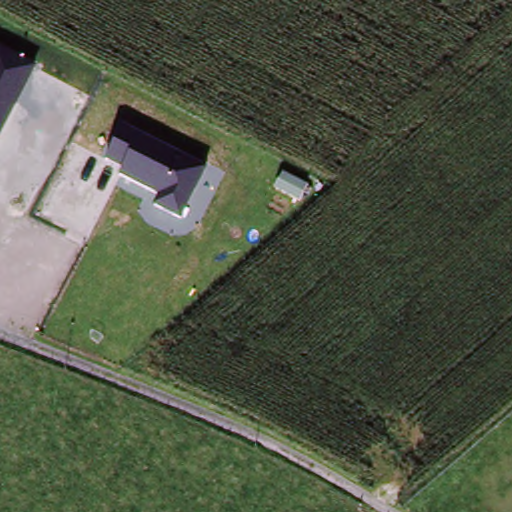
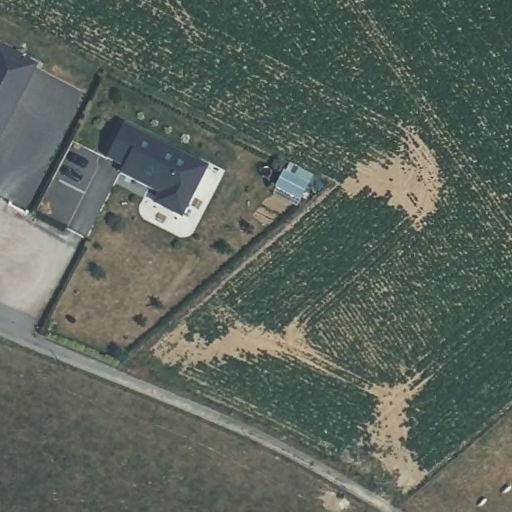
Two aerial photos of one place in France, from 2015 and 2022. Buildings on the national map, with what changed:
unchanged [(37,65),(0,136),(0,46),(37,65)]
unchanged [(209,165),(182,218),(154,204),(159,193),(118,174),(122,166),(105,159),(124,124),(209,165)]

